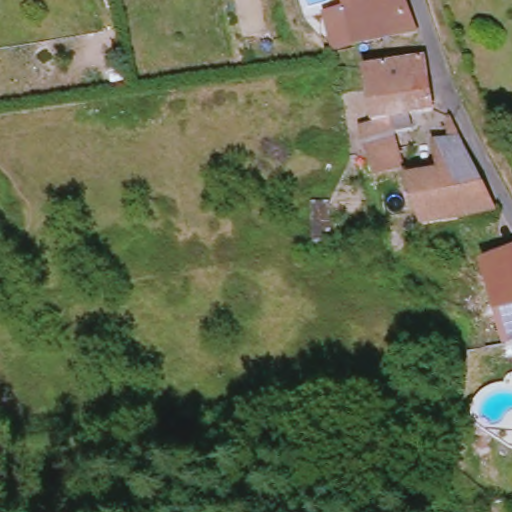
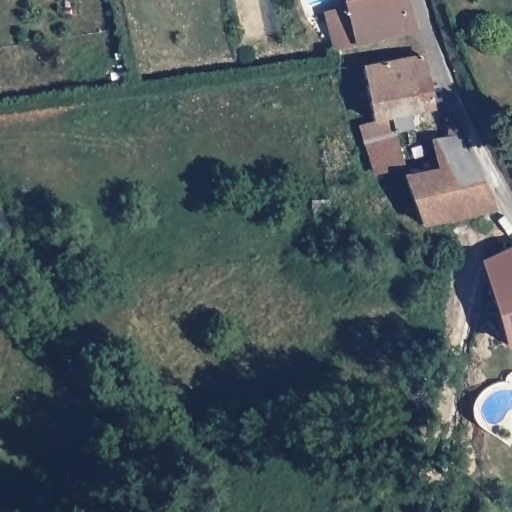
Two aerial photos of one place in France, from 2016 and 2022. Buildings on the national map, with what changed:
unchanged [(345,0),(412,0),(422,29),(409,32),(405,34),(357,48),(353,31),(345,0)]
unchanged [(362,67),(410,52),(409,32),(422,29),(427,46),(432,68),(367,88),(362,67)]
unchanged [(363,122),(374,119),(367,88),(432,68),(440,105),(415,115),(418,130),(397,137),(405,169),(376,177),(363,122)]
unchanged [(407,174),(439,165),(432,136),(462,127),(465,130),(494,194),(500,201),(420,225),(407,174)]
unchanged [(320,211),(336,209),(340,249),(324,252),(320,211)]
unchanged [(485,257),(512,246),(512,345),(510,345),(485,261),(485,257)]

